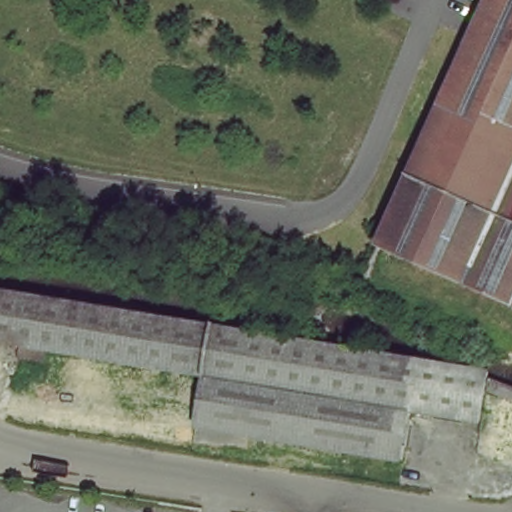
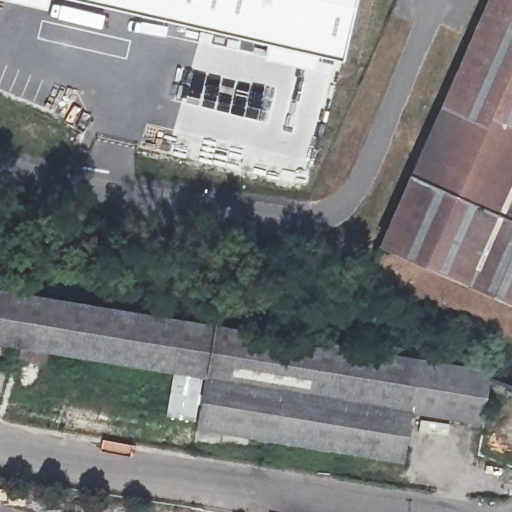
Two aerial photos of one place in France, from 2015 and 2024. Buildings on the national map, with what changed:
new [(47,9),(7,0),(49,0),(47,9)]
new [(343,62),(319,56),(315,71),(264,60),(267,43),(77,0),(357,0),(343,62)]
unchanged [(380,247),(387,232),(412,176),(437,118),(441,110),(472,42),(490,0),(512,0),(512,304),(466,285),(380,247)]
unchanged [(480,426),(410,415),(402,463),(294,445),(196,428),(204,378),(123,366),(31,352),(0,347),(0,291),(50,300),(122,312),(190,323),(198,325),(264,336),(341,348),(435,365),(487,373),(487,378),(480,426)]

